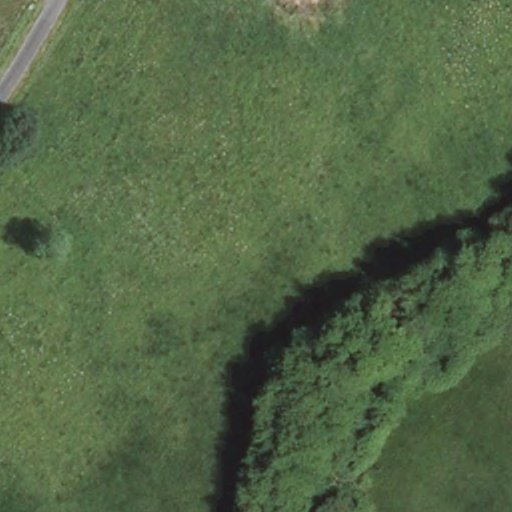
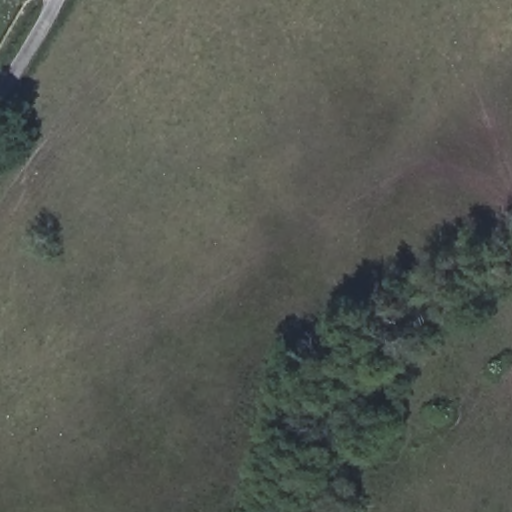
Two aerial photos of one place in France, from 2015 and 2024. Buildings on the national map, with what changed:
[]

